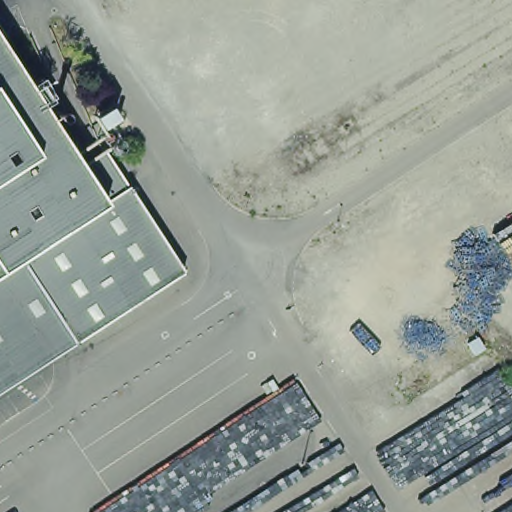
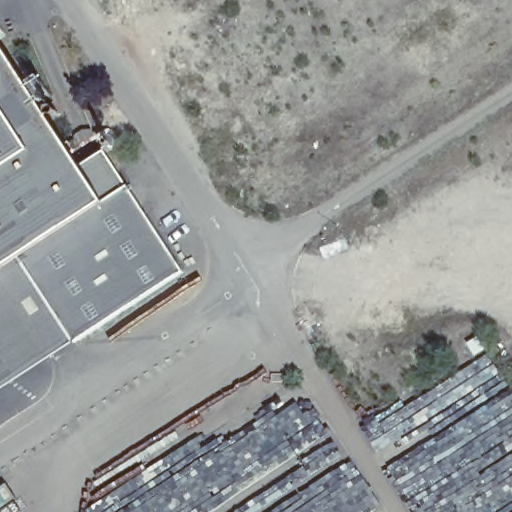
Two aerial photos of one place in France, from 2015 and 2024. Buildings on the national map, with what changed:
unchanged [(0,38),(85,173),(108,211),(0,278),(0,38)]
unchanged [(85,173),(107,157),(122,182),(132,196),(108,211),(85,173)]
unchanged [(132,196),(181,268),(182,273),(176,278),(0,396),(0,278),(108,211),(132,196)]

